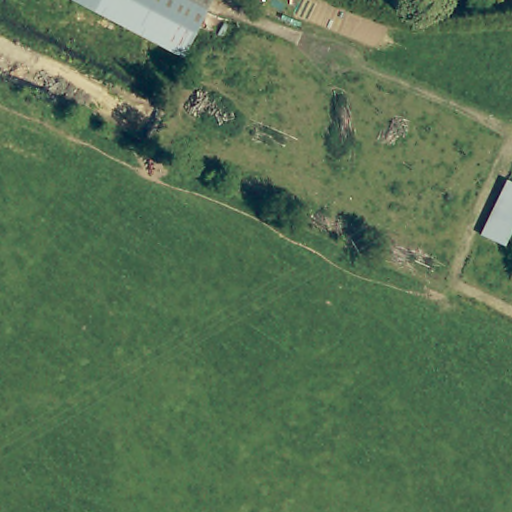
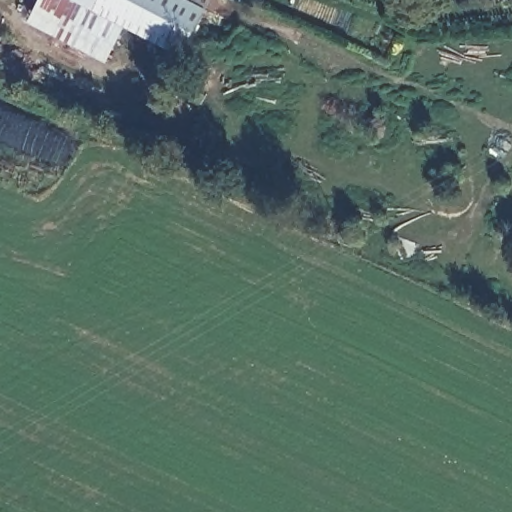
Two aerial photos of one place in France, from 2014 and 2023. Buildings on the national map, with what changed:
new [(44,0),(80,0),(86,3),(126,24),(106,63),(31,23),(44,0)]
unchanged [(86,3),(80,0),(188,0),(207,10),(183,55),(86,3)]
unchanged [(188,0),(213,0),(207,10),(188,0)]
new [(239,0),(239,1),(238,0),(239,0)]
demolished [(512,229),(506,242),(481,231),(511,177),(512,178),(512,229)]

